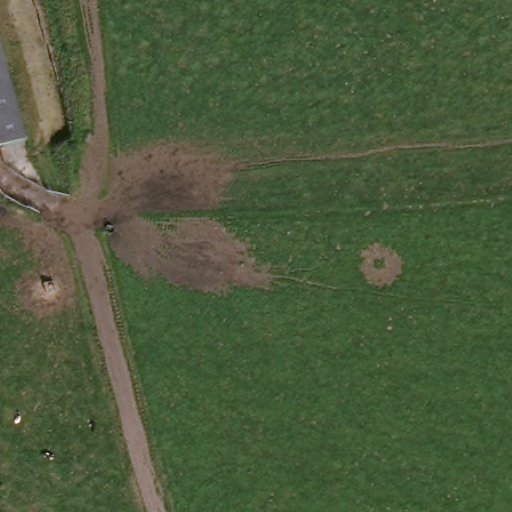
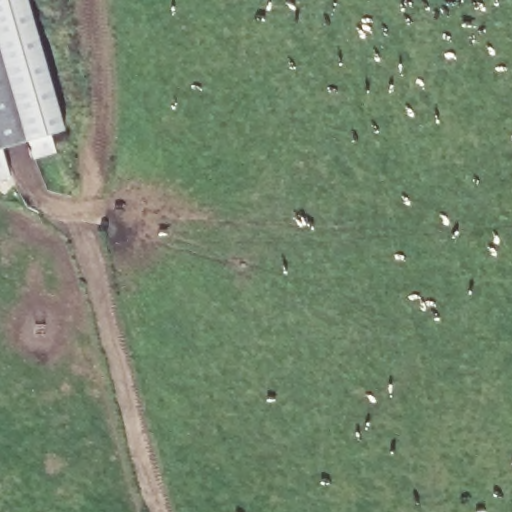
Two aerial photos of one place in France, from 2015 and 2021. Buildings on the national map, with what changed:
new [(50,133),(56,153),(34,160),(28,140),(2,147),(9,179),(0,182),(0,0),(28,0),(64,128),(50,133)]
demolished [(0,140),(0,76),(18,135),(0,140)]

